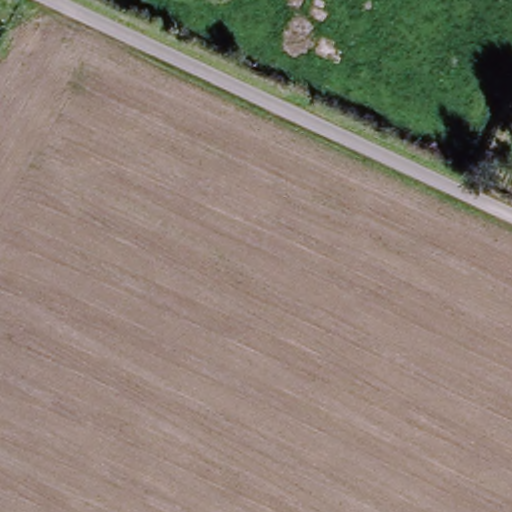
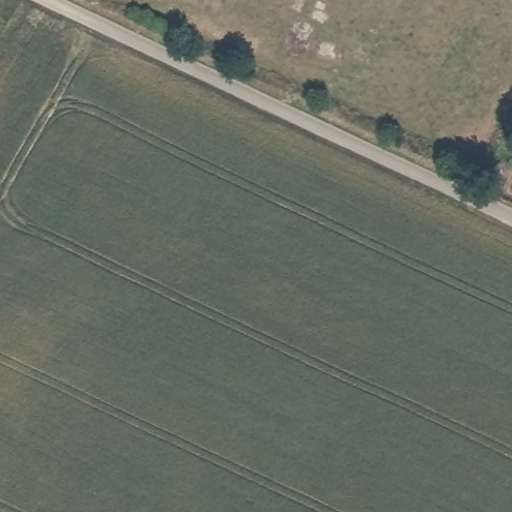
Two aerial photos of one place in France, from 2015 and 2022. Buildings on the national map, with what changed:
[]

